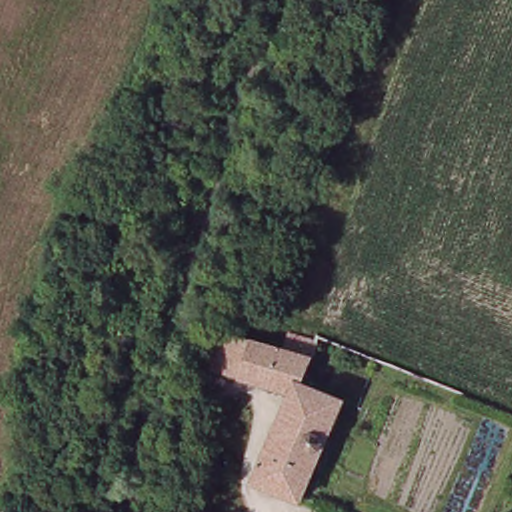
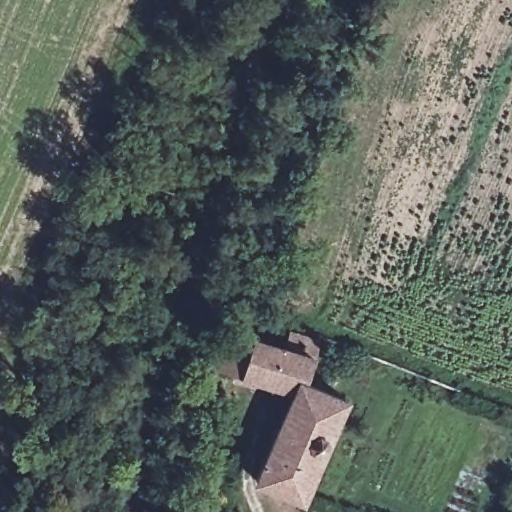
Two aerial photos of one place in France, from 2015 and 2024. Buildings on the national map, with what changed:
unchanged [(301,503),(255,482),(292,398),(213,366),(220,345),(225,328),(247,337),(252,339),(283,352),(292,336),(319,347),(302,387),(345,405),(301,503)]

